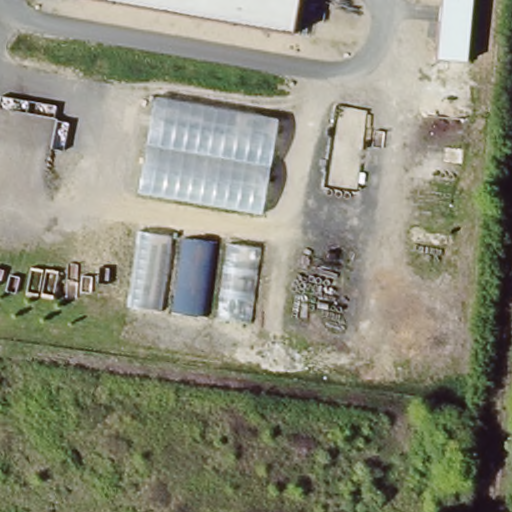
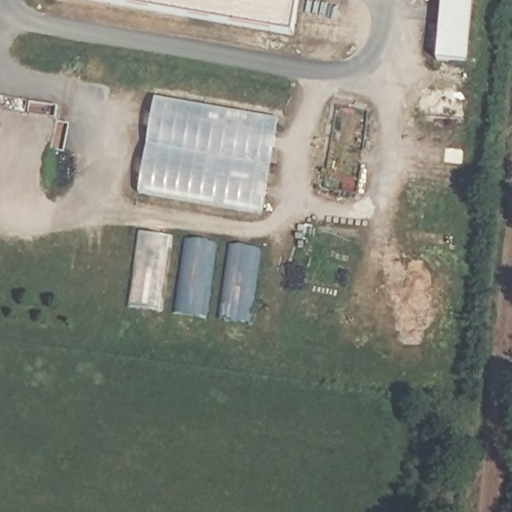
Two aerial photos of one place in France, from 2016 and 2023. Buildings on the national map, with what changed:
unchanged [(292,34),(88,0),(298,0),(292,34)]
unchanged [(468,66),(437,63),(442,0),(474,0),(468,66)]
unchanged [(137,192),(155,95),(279,118),(261,212),(137,192)]
unchanged [(127,306),(138,231),(262,245),(250,319),(127,306)]

